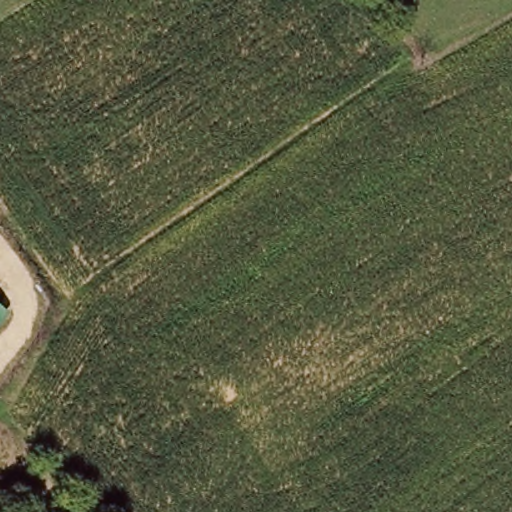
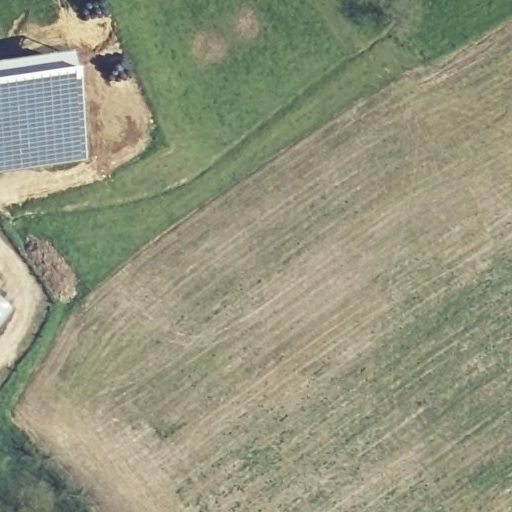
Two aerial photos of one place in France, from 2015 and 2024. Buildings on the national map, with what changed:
new [(81,161),(0,172),(0,65),(65,56),(81,161)]
unchanged [(6,310),(0,318),(0,304),(6,310)]

